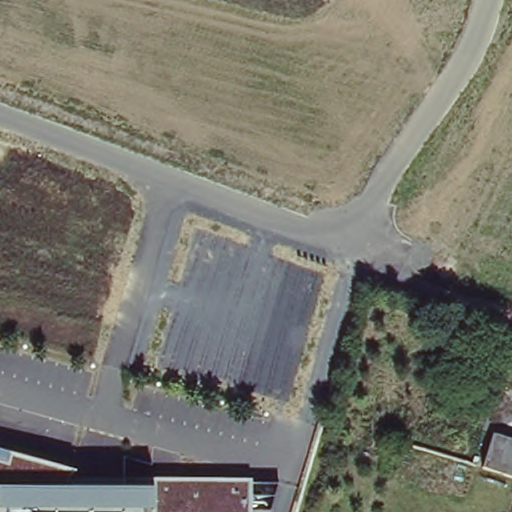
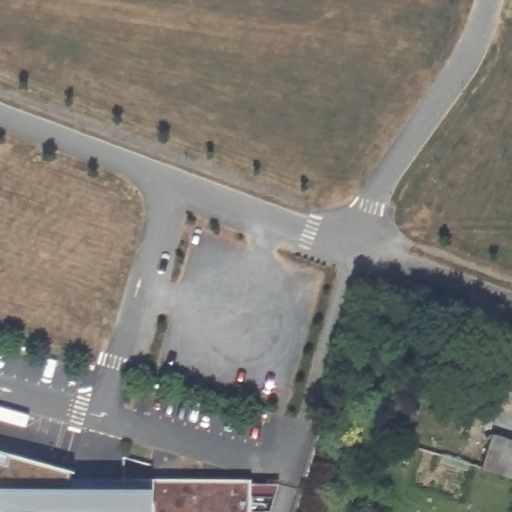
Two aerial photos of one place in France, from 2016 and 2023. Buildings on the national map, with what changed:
unchanged [(484,464),(494,434),(512,440),(512,472),(484,464)]
unchanged [(70,480),(155,485),(249,477),(249,512),(0,512),(0,446),(69,465),(70,480)]

